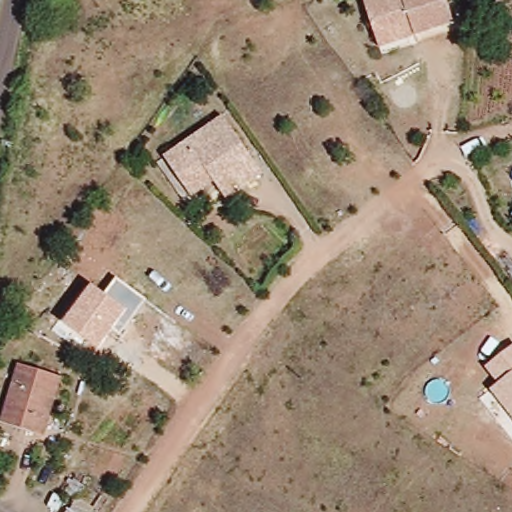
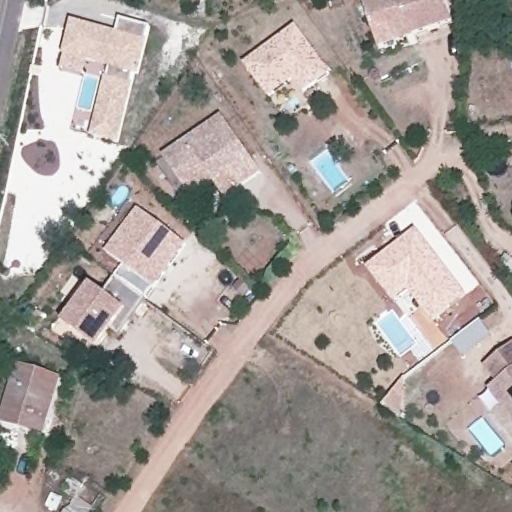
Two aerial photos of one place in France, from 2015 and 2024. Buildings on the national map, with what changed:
unchanged [(450,27),(381,47),(366,0),(445,0),(450,27)]
new [(93,136),(110,66),(65,56),(73,24),(145,43),(138,76),(134,74),(118,144),(93,136)]
new [(305,96),(294,82),(270,100),(246,68),(298,29),(331,74),(305,96)]
unchanged [(188,187),(166,155),(211,122),(253,180),(225,199),(215,183),(195,196),(188,187)]
new [(188,244),(146,299),(116,277),(123,265),(105,252),(138,209),(188,244)]
new [(416,229),(467,294),(431,320),(409,291),(393,303),(367,268),(416,229)]
new [(508,253),(512,257),(512,282),(497,266),(508,253)]
unchanged [(104,294),(116,277),(148,301),(122,336),(114,330),(100,349),(65,324),(94,286),(104,294)]
new [(481,320),(492,335),(463,356),(453,342),(481,320)]
unchanged [(491,388),(499,382),(487,367),(512,347),(512,416),(491,388)]
unchanged [(0,417),(20,363),(56,374),(40,431),(0,420),(0,417)]
new [(410,386),(427,399),(410,424),(391,414),(410,386)]
unchanged [(94,512),(68,512),(82,491),(100,503),(94,512)]

